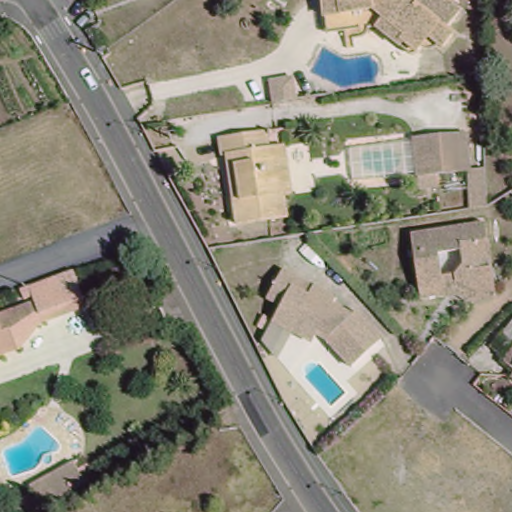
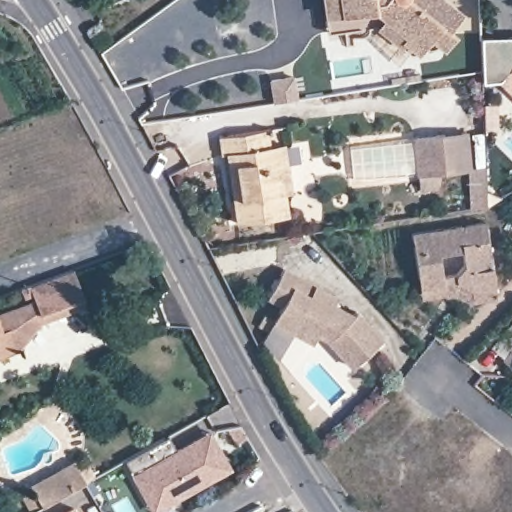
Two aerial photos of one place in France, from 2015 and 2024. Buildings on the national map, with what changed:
unchanged [(348,25),(331,25),(328,0),(449,0),(459,6),(446,20),(454,27),(444,42),(425,30),(413,49),(401,41),(398,46),(378,34),(379,24),(348,25)]
unchanged [(100,29),(108,18),(123,30),(111,38),(100,29)]
new [(498,83),(485,84),(483,39),(512,38),(512,96),(498,83)]
unchanged [(233,157),(226,158),(222,159),(219,139),(269,132),(272,152),(281,151),(288,195),(280,195),(283,219),(236,225),(233,201),(240,200),(233,157)]
unchanged [(467,138),(469,173),(417,175),(415,140),(467,138)]
unchanged [(472,295),(467,288),(459,285),(451,286),(445,291),(444,300),(421,302),(418,282),(412,235),(491,225),(499,291),(500,301),(473,304),(472,295)]
unchanged [(35,285),(80,268),(93,305),(68,314),(48,321),(43,310),(35,285)]
unchanged [(295,278),(347,300),(344,310),(350,316),(358,319),(363,319),(388,345),(359,370),(328,338),(321,343),(288,328),(296,311),(282,305),(295,278)]
unchanged [(8,326),(18,347),(0,355),(0,327),(1,330),(8,326)]
unchanged [(512,357),(512,364),(509,361),(512,357)]
new [(136,475),(128,460),(171,435),(180,450),(181,449),(212,432),(215,436),(232,468),(163,506),(156,510),(136,475)]
unchanged [(81,455),(94,473),(43,512),(41,512),(28,495),(81,455)]
new [(75,501),(81,512),(56,512),(75,501)]

